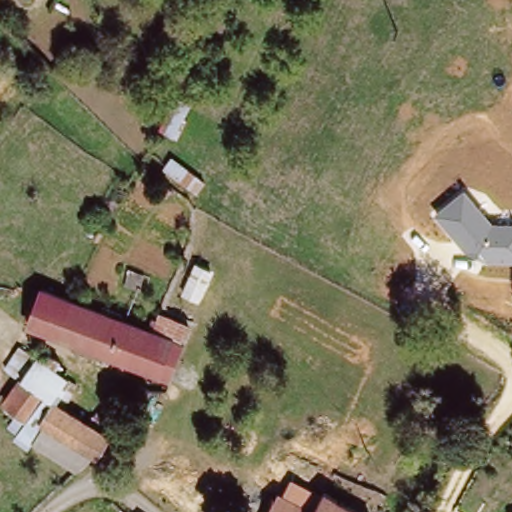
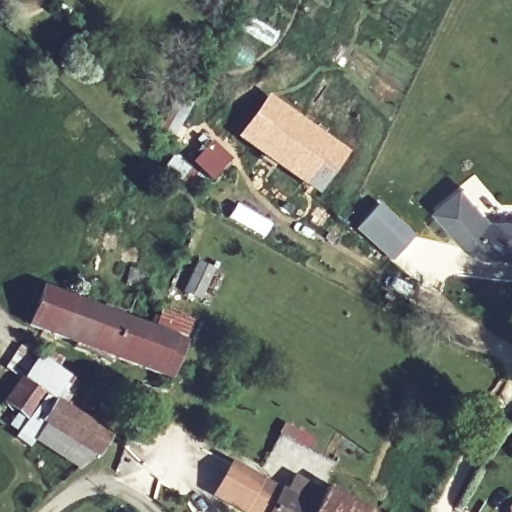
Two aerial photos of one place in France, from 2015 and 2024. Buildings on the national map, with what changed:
new [(347,154),(317,195),(236,138),(265,96),(347,154)]
new [(192,191),(165,166),(175,155),(193,162),(212,141),(232,160),(213,180),(207,175),(192,191)]
unchanged [(512,222),(512,263),(486,262),(467,254),(432,211),(465,185),(497,222),(512,222)]
new [(416,235),(392,261),(356,229),(380,203),(416,235)]
unchanged [(30,314),(37,288),(59,295),(147,328),(155,310),(183,320),(176,338),(166,370),(48,326),(29,320),(30,314)]
unchanged [(37,357),(40,350),(60,358),(52,367),(70,378),(75,381),(67,400),(60,393),(55,401),(110,433),(72,467),(32,443),(29,447),(14,438),(25,419),(2,402),(18,380),(4,368),(18,346),(37,357)]
new [(229,462),(280,488),(285,491),(293,475),(328,488),(368,512),(240,512),(210,496),(229,462)]
demolished [(322,490),(360,512),(308,512),(310,510),(322,490)]
demolished [(310,510),(308,512),(269,512),(279,492),(310,510)]

